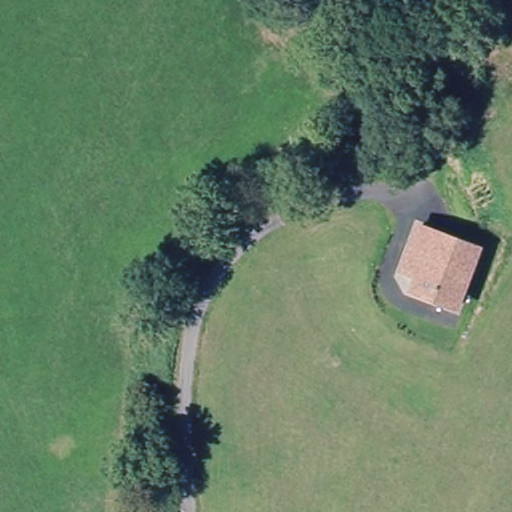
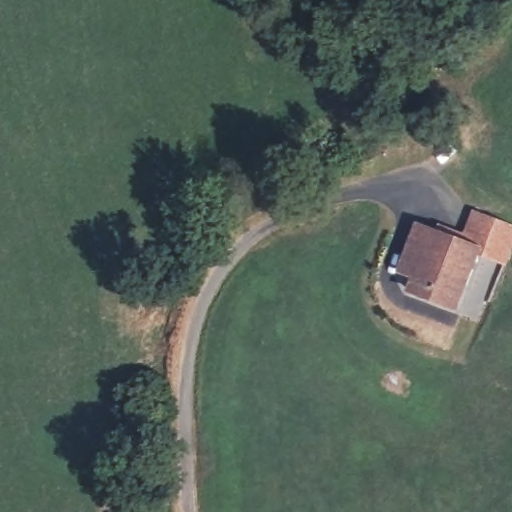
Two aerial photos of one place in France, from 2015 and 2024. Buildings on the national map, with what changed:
new [(462,234),(471,212),(512,225),(512,250),(507,266),(475,256),(477,250),(434,233),(437,225),(462,234)]
unchanged [(401,272),(410,249),(418,227),(434,233),(477,250),(475,256),(454,310),(410,292),(416,277),(401,272)]

